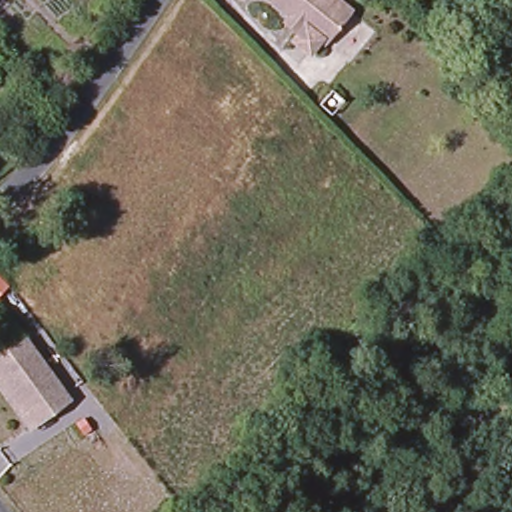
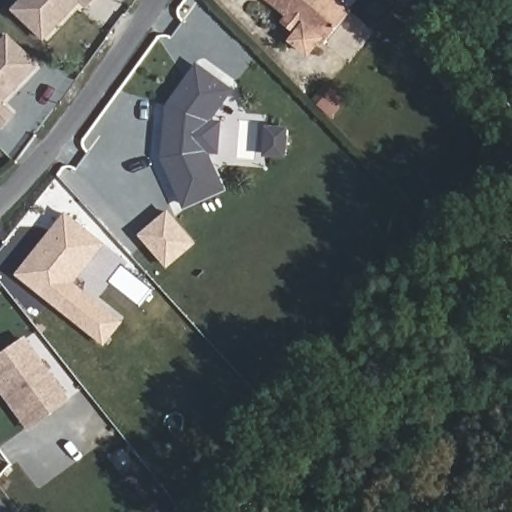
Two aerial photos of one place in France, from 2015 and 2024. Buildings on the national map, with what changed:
new [(27,0),(85,0),(49,37),(19,9),(27,0)]
new [(92,5),(87,0),(97,0),(92,5)]
unchanged [(314,39),(303,53),(287,41),(300,23),(272,0),(335,0),(347,10),(322,45),(314,39)]
new [(41,65),(4,102),(16,115),(5,127),(0,122),(0,48),(12,36),(41,65)]
new [(212,121),(222,122),(219,154),(210,154),(228,188),(184,209),(159,158),(164,107),(198,61),(234,90),(212,121)]
new [(269,127),(289,128),(288,157),(268,156),(269,127)]
new [(168,210),(195,243),(167,267),(138,235),(168,210)]
new [(15,275),(66,212),(106,244),(76,282),(123,318),(102,346),(15,275)]
unchanged [(0,360),(23,342),(68,397),(35,425),(34,425),(30,428),(0,392),(0,360)]

